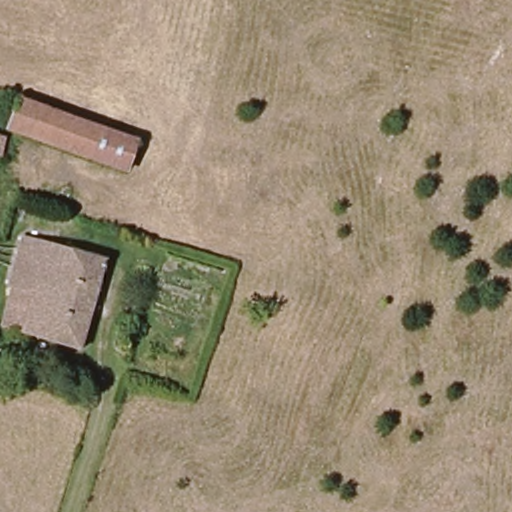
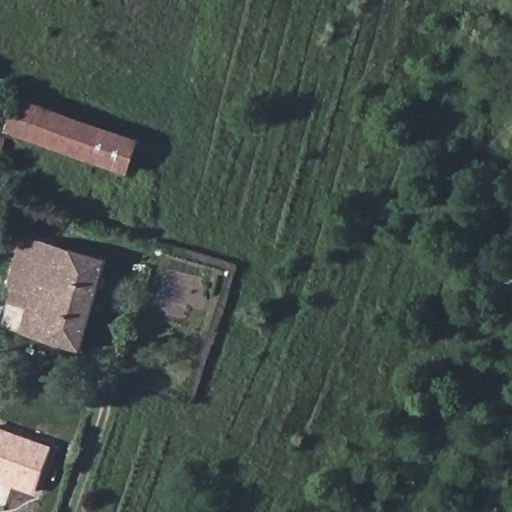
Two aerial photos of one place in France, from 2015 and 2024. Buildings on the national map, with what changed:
unchanged [(43,104),(120,134),(108,165),(30,135),(43,104)]
unchanged [(11,141),(5,158),(0,156),(0,137),(11,141)]
unchanged [(15,295),(3,291),(20,242),(109,267),(82,352),(4,329),(15,295)]
new [(52,447),(36,491),(30,489),(29,493),(0,482),(0,428),(52,447)]

